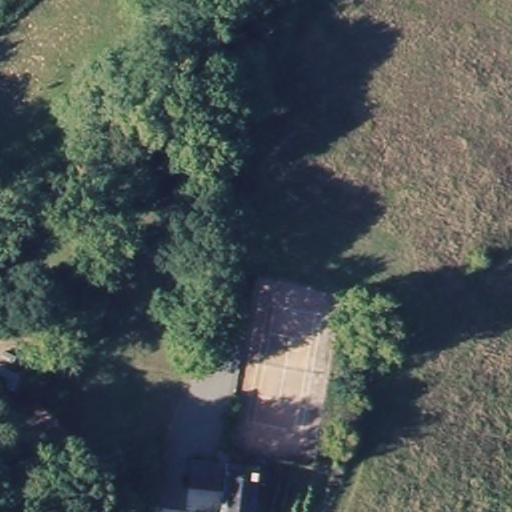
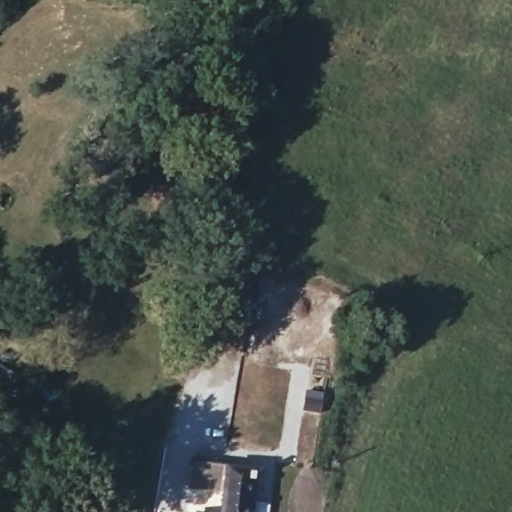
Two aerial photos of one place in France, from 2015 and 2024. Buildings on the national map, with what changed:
unchanged [(246,481),(244,512),(217,512),(219,489),(185,485),(188,459),(222,463),(264,468),(263,482),(246,481)]

